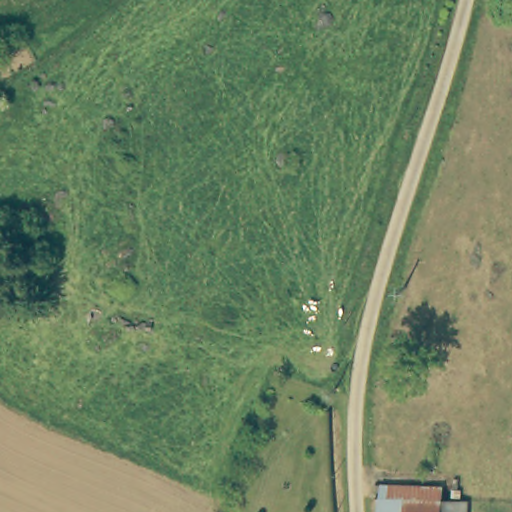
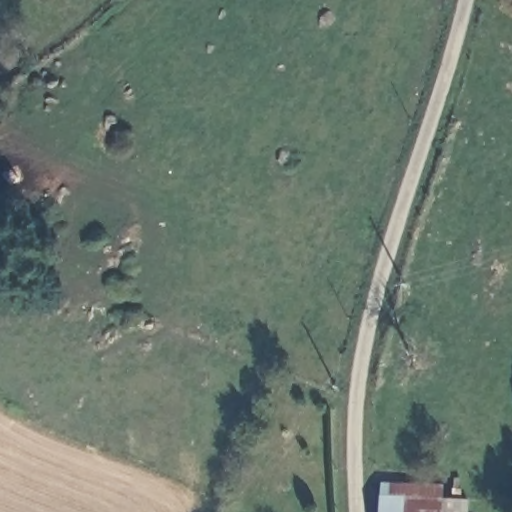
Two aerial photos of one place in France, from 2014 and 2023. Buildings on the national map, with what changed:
unchanged [(375,512),(377,495),(440,502),(439,512),(375,512)]
unchanged [(463,512),(439,512),(440,502),(464,505),(463,512)]

